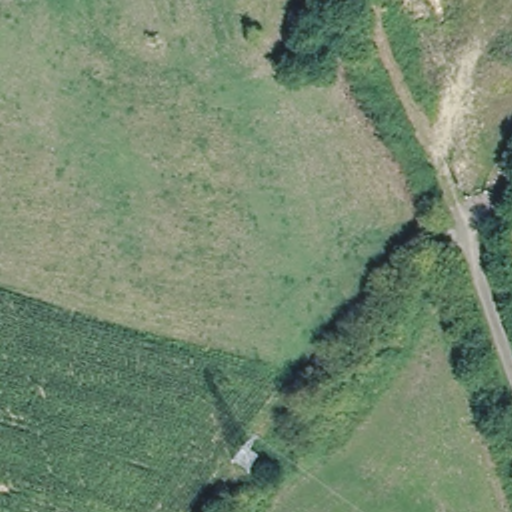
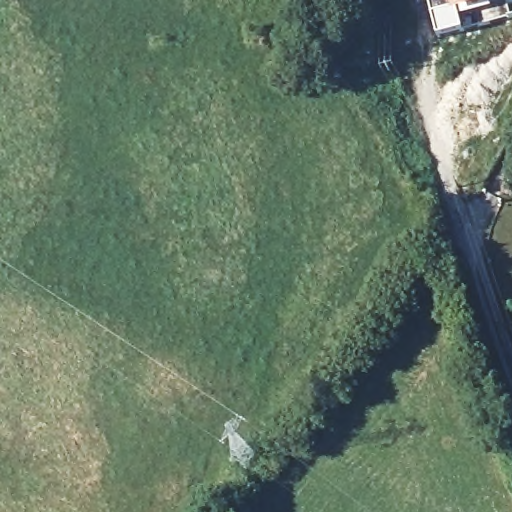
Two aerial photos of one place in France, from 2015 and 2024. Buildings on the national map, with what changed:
new [(512,3),(462,17),(465,31),(438,37),(428,0),(512,0),(512,3)]

